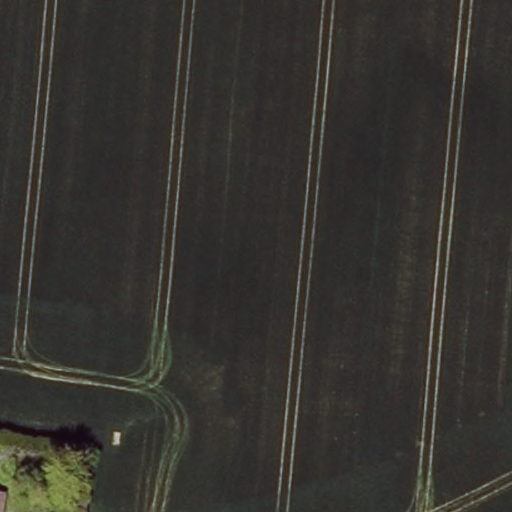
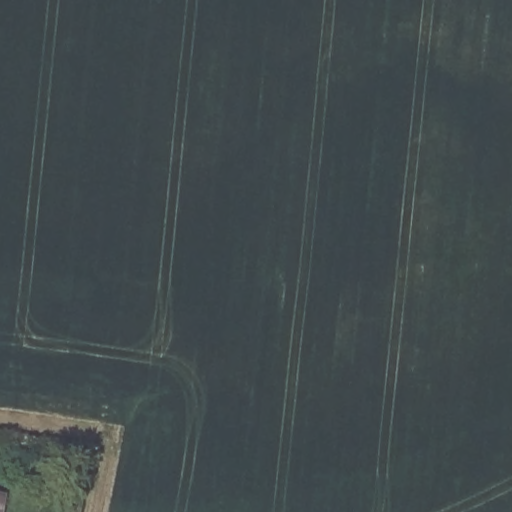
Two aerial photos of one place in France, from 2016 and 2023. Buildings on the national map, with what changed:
unchanged [(2,512),(0,512),(0,497),(5,498),(2,512)]

